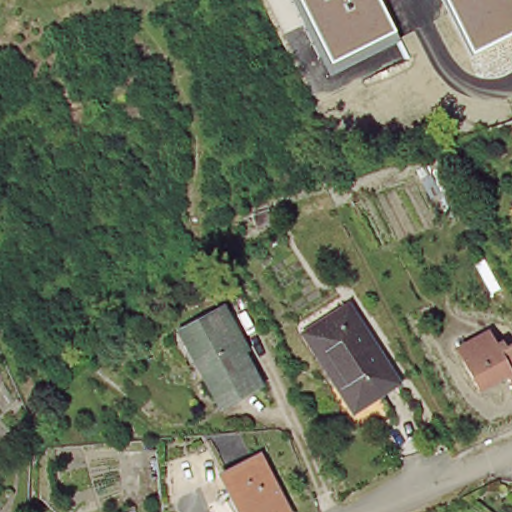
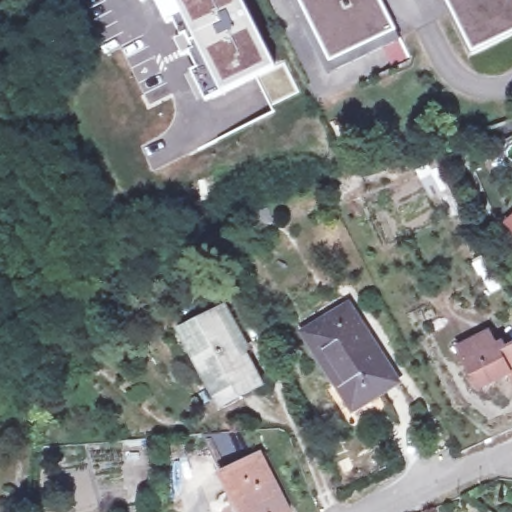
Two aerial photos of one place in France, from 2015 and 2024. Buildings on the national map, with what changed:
new [(247,114),(236,90),(222,96),(207,104),(190,72),(196,69),(188,53),(182,55),(175,39),(187,32),(180,18),(168,24),(155,0),(243,0),(276,65),(283,60),(299,91),(272,106),(274,111),(250,123),(247,114)]
unchanged [(400,40),(328,75),(291,0),(379,0),(395,31),(400,40)]
unchanged [(470,55),(443,0),(512,0),(512,33),(470,55)]
demolished [(492,109),(512,102),(512,127),(498,131),(490,134),(482,112),(492,109)]
unchanged [(352,410),(337,387),(341,384),(308,332),(347,305),(397,382),(352,410)]
unchanged [(258,384),(220,401),(199,359),(208,355),(193,325),(227,309),(242,338),(237,340),(258,384)]
unchanged [(482,385),(460,347),(490,329),(501,349),(512,343),(512,368),(482,385)]
unchanged [(223,479),(228,477),(208,440),(233,438),(242,437),(256,464),(262,461),(289,512),(241,512),(223,479)]

